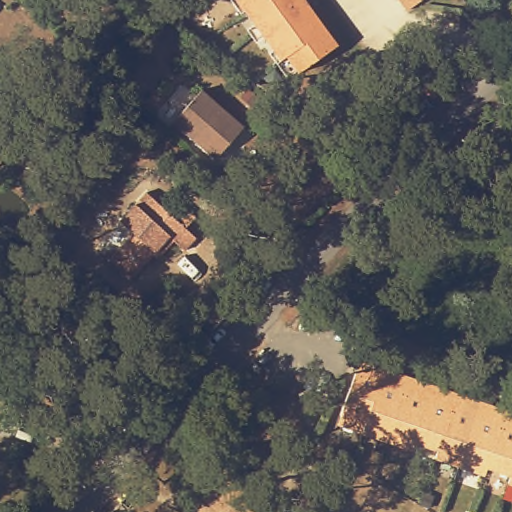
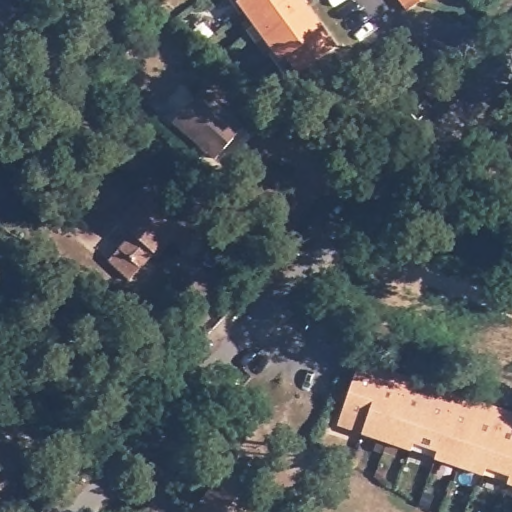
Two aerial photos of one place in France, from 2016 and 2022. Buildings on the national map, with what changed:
unchanged [(275,58),(237,5),(243,0),(301,0),(332,41),(294,70),(282,54),(275,58)]
unchanged [(408,0),(420,0),(412,6),(408,0)]
unchanged [(432,100),(424,92),(438,79),(446,86),(432,100)]
unchanged [(6,148),(0,141),(0,139),(23,115),(25,116),(29,112),(48,91),(58,100),(39,121),(9,156),(4,151),(6,148)]
unchanged [(222,112),(195,141),(174,122),(199,93),(222,112)]
unchanged [(241,129),(214,159),(195,141),(222,112),(241,129)]
unchanged [(0,153),(6,159),(0,166),(0,153)]
unchanged [(156,255),(135,279),(113,260),(137,233),(122,220),(149,192),(169,211),(179,199),(199,216),(188,228),(199,238),(187,250),(176,240),(160,258),(156,255)]
unchanged [(344,420),(363,362),(512,412),(512,477),(344,420)]
unchanged [(251,512),(196,512),(215,486),(252,512),(251,512)]

